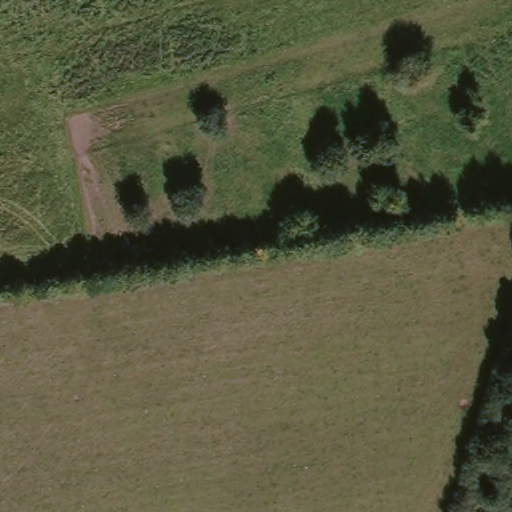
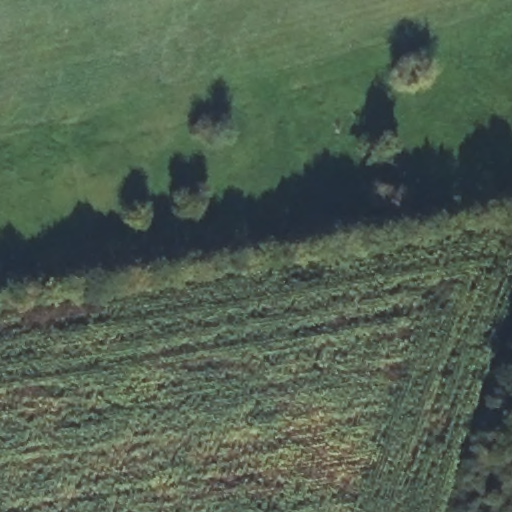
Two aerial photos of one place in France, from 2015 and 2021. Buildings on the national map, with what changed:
[]

